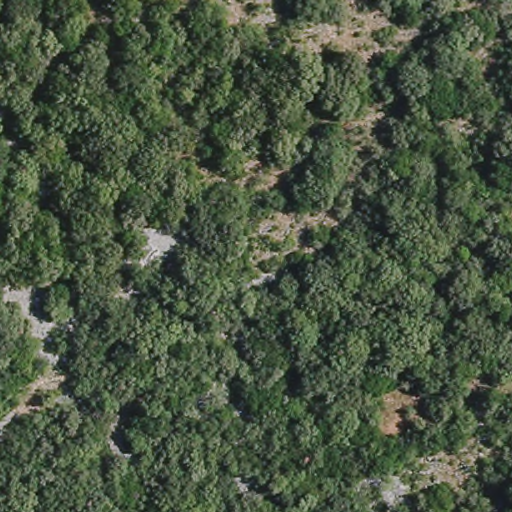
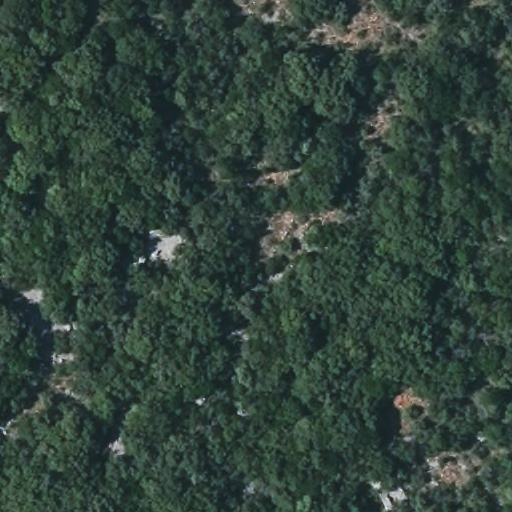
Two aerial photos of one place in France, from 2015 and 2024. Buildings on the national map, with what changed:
[]

